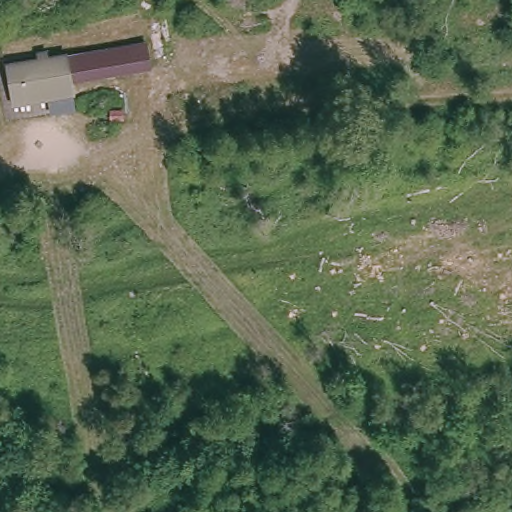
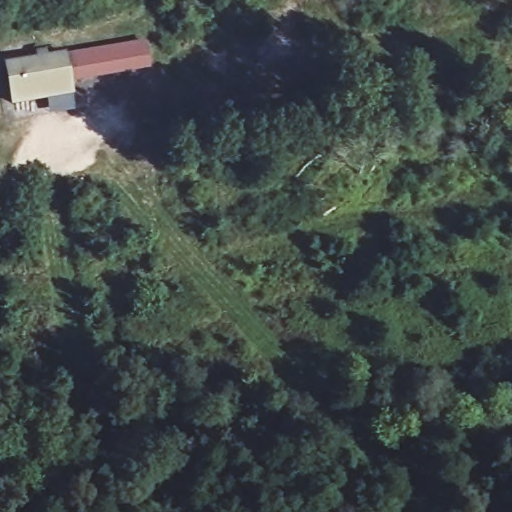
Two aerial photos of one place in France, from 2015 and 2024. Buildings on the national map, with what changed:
unchanged [(146,38),(152,70),(72,84),(65,51),(146,38)]
unchanged [(65,51),(73,92),(13,106),(4,63),(65,51)]

